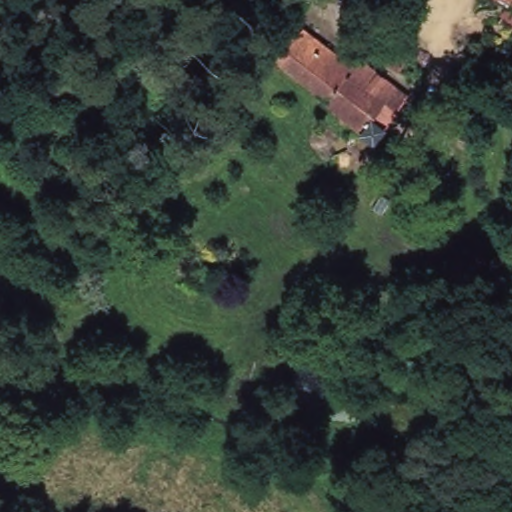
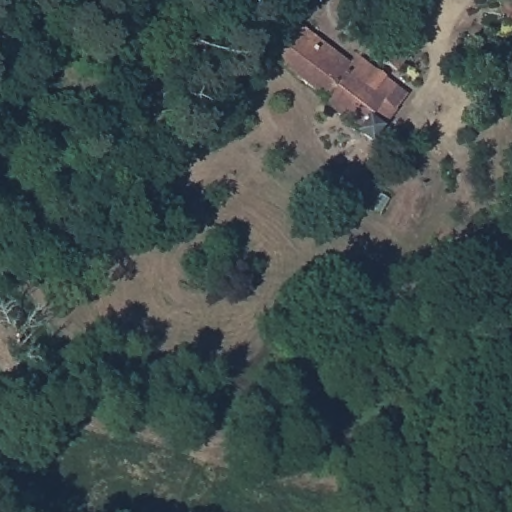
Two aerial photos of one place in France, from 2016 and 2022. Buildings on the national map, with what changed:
unchanged [(270,13),(254,0),(281,0),(270,13)]
unchanged [(512,8),(501,0),(512,0),(512,8)]
unchanged [(272,60),(256,49),(280,15),(346,62),(351,55),(401,92),(392,105),(382,98),(368,119),(377,126),(368,139),(318,104),(320,100),(270,63),(272,60)]
unchanged [(415,55),(402,73),(378,57),(392,38),(415,55)]
unchanged [(214,109),(220,103),(254,133),(245,143),(226,128),(193,164),(182,152),(218,113),(214,109)]

